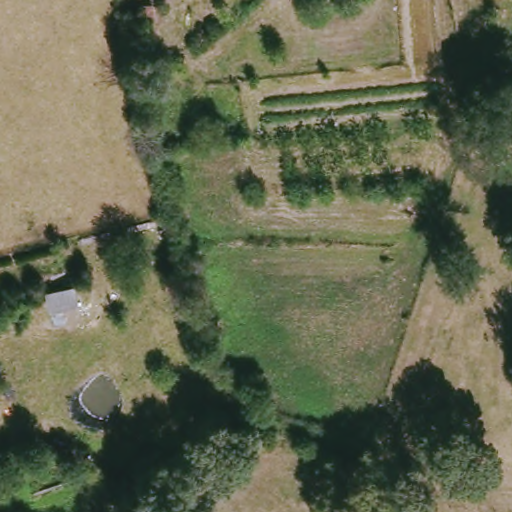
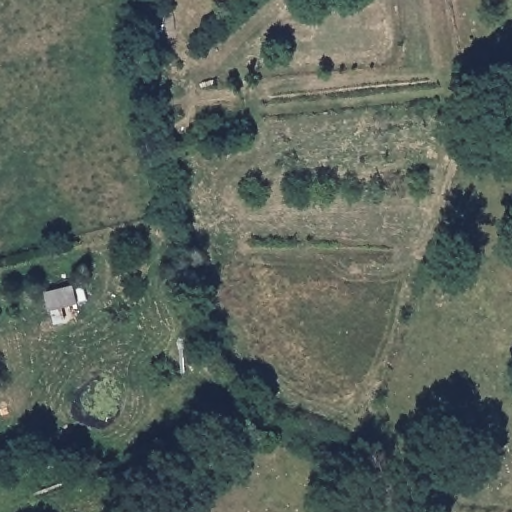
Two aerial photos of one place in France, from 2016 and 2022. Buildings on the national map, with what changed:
unchanged [(48,292),(73,286),(78,303),(61,307),(64,320),(54,322),(48,292)]

